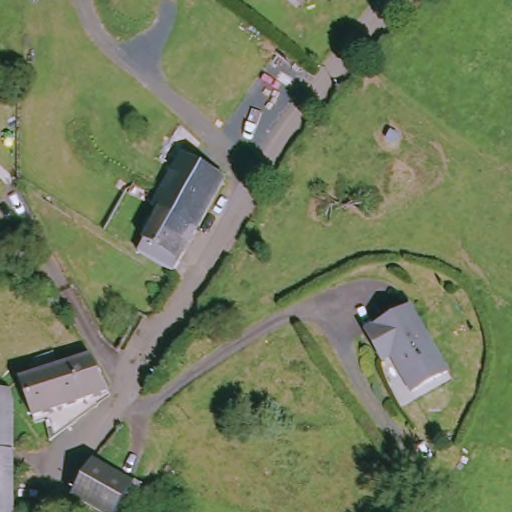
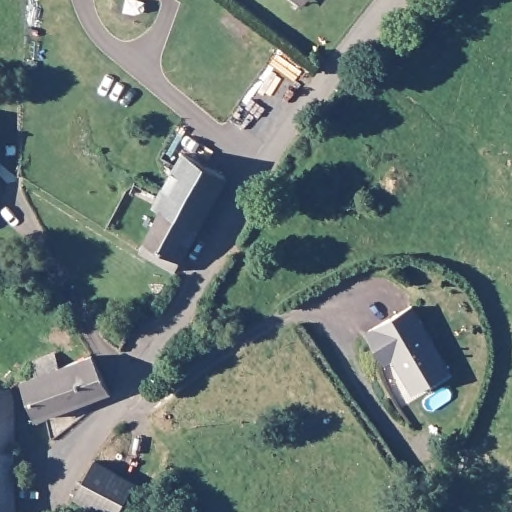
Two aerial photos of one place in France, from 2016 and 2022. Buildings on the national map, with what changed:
unchanged [(304,1),(303,0),(304,0),(304,1)]
unchanged [(135,256),(157,214),(150,209),(179,157),(221,182),(170,276),(135,256)]
unchanged [(442,367),(408,386),(390,357),(397,352),(394,346),(376,356),(360,331),(402,305),(442,367)]
unchanged [(54,351),(58,365),(88,355),(105,390),(31,417),(17,379),(35,372),(30,361),(54,351)]
unchanged [(10,512),(0,512),(0,385),(8,385),(10,512)]
unchanged [(122,495),(113,512),(98,512),(70,496),(89,458),(129,482),(145,491),(140,502),(122,495)]

